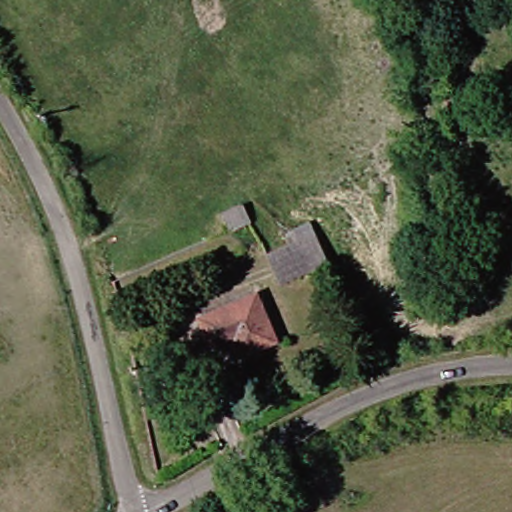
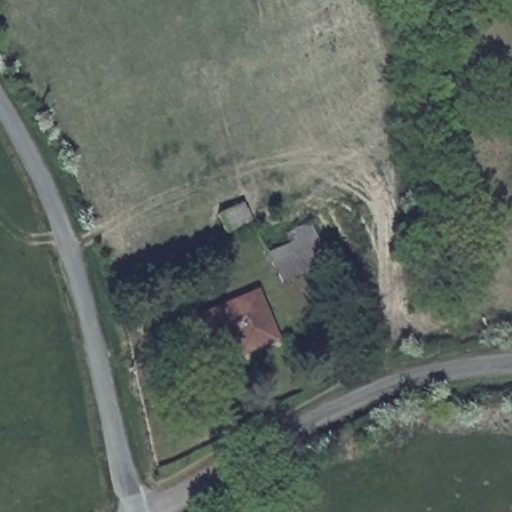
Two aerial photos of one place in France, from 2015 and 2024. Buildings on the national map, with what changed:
unchanged [(241,202),(250,224),(221,235),(215,217),(241,202)]
unchanged [(297,223),(319,262),(275,287),(259,260),(280,247),(276,235),(297,223)]
unchanged [(188,323),(244,289),(269,334),(231,357),(222,342),(204,353),(188,323)]

